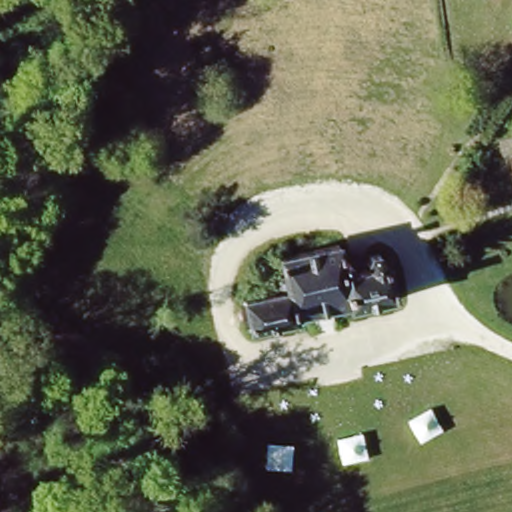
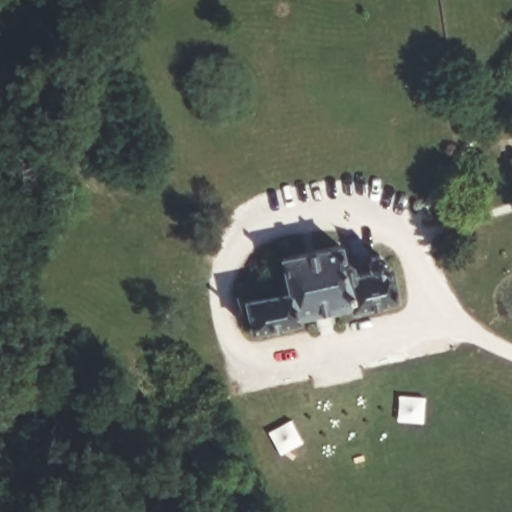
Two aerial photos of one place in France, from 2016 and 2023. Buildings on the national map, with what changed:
unchanged [(512,152),(512,183),(503,156),(512,152)]
unchanged [(270,290),(267,276),(277,273),(275,258),(330,246),(333,260),(347,256),(352,273),(378,267),(376,257),(390,252),(400,298),(360,309),(355,292),(289,311),(292,332),(253,342),(242,301),(270,290)]

